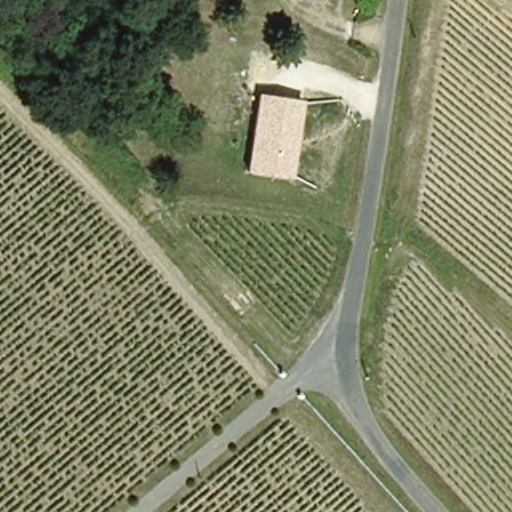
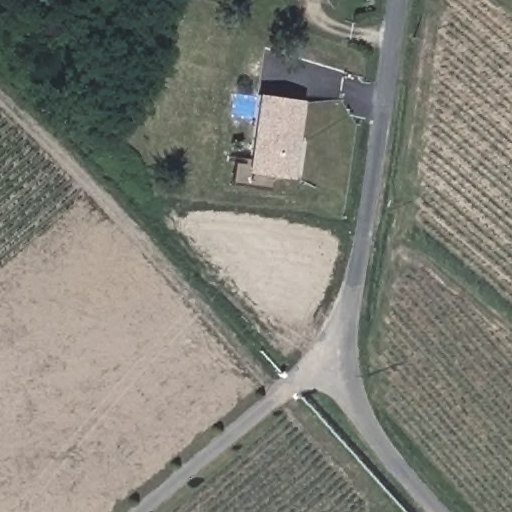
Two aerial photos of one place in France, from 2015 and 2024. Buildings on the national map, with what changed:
unchanged [(291,178),(246,171),(257,94),(302,99),(291,178)]

